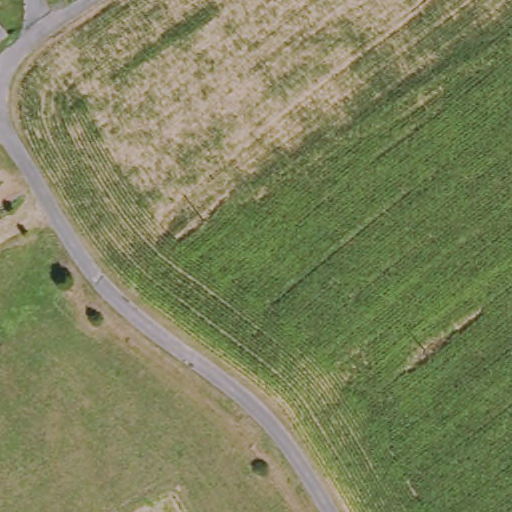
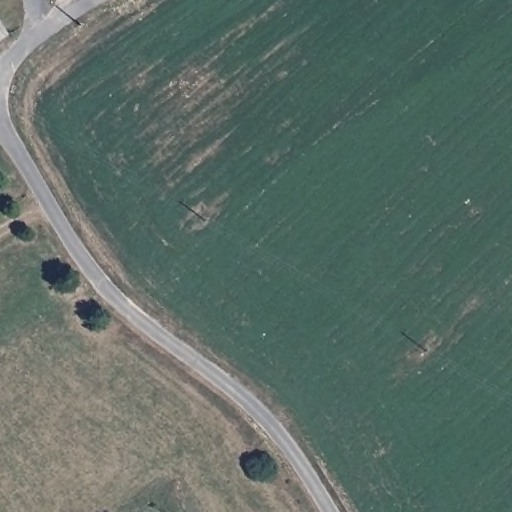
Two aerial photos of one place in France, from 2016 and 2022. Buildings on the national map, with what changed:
unchanged [(0,45),(0,20),(11,39),(0,45)]

